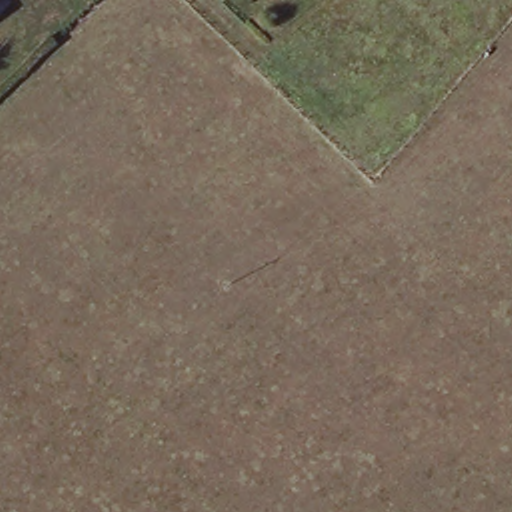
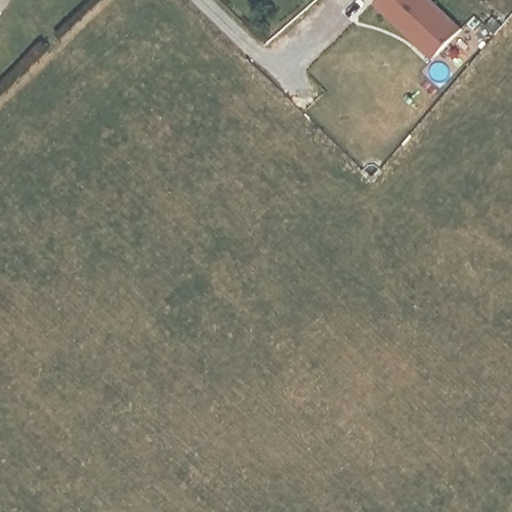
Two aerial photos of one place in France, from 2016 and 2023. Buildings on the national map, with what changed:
new [(375,5),(378,1),(377,0),(430,0),(462,32),(437,56),(431,62),(414,44),(375,5)]
unchanged [(0,17),(0,8),(4,13),(0,17)]

